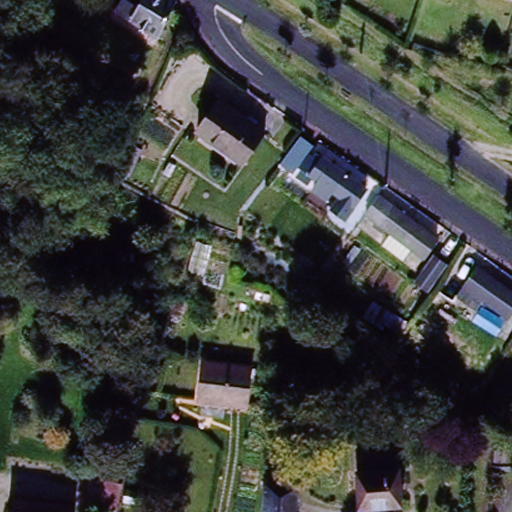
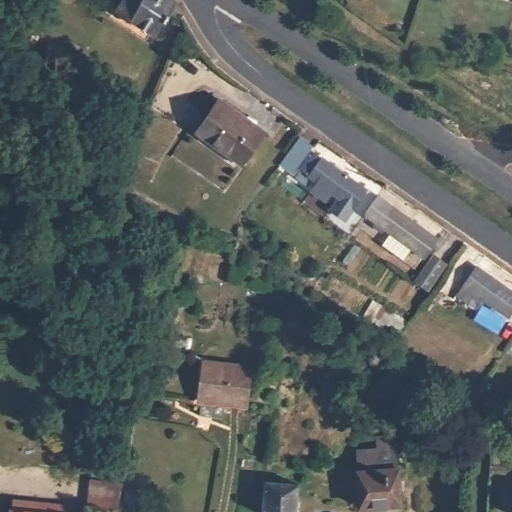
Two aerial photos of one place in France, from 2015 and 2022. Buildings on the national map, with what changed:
unchanged [(115,9),(120,0),(177,0),(179,2),(171,15),(157,37),(115,9)]
unchanged [(268,136),(246,167),(200,134),(222,103),(268,136)]
unchanged [(347,221),(330,209),(340,195),(303,167),(312,156),(315,158),(318,154),(369,191),(347,221)]
unchanged [(384,242),(392,229),(376,217),(367,211),(379,192),(389,199),(440,236),(427,254),(414,245),(405,257),(384,242)]
unchanged [(445,266),(427,291),(414,282),(432,257),(445,266)]
unchanged [(512,316),(472,287),(474,283),(463,277),(472,264),(482,272),(484,268),(512,288),(512,316)]
unchanged [(201,412),(204,397),(200,397),(205,360),(254,366),(248,404),(226,401),(224,415),(201,412)]
unchanged [(396,466),(399,501),(357,503),(355,469),(396,466)]
unchanged [(92,508),(97,479),(123,483),(118,512),(92,508)]
unchanged [(299,512),(266,512),(270,483),(302,487),(299,512)]
unchanged [(56,512),(11,512),(12,507),(56,512)]

